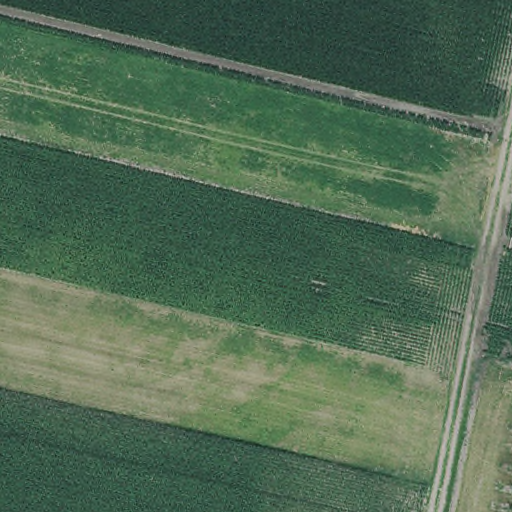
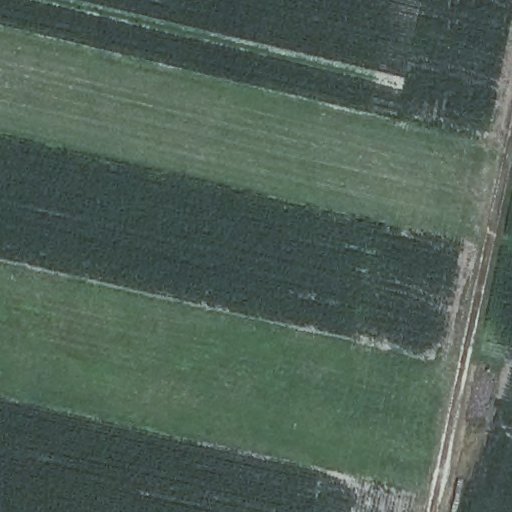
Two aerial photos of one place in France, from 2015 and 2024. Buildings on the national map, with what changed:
[]

